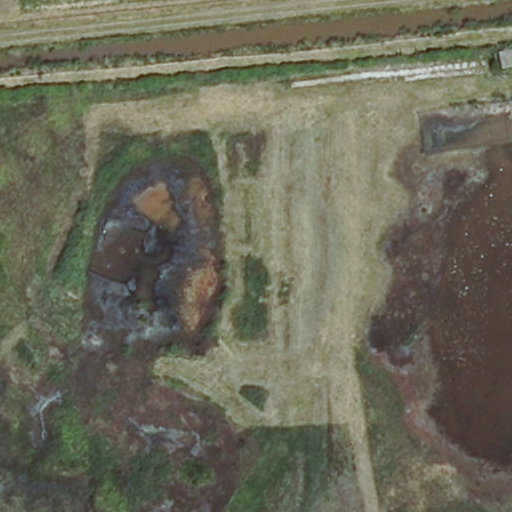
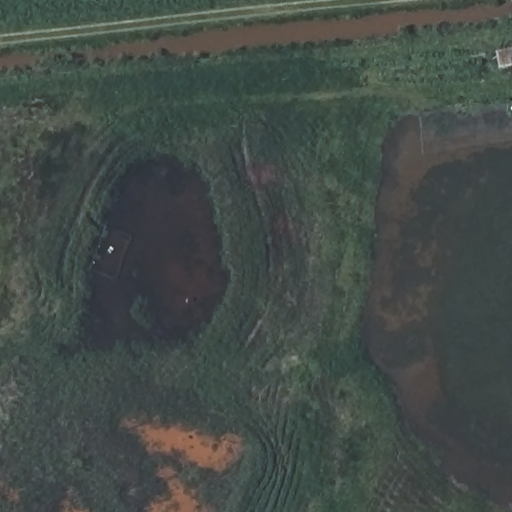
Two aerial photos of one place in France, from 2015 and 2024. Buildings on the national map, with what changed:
unchanged [(498,54),(512,51),(512,70),(500,74),(498,54)]

